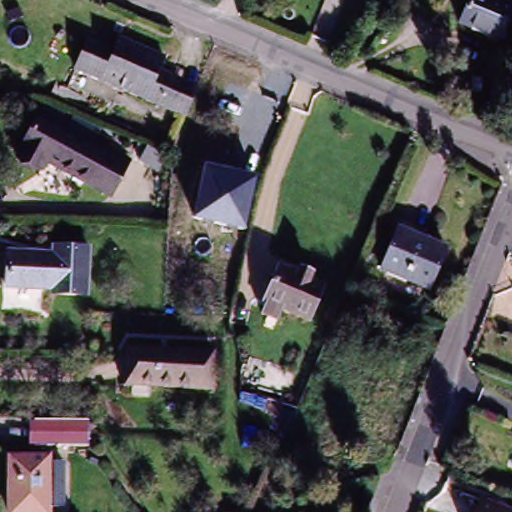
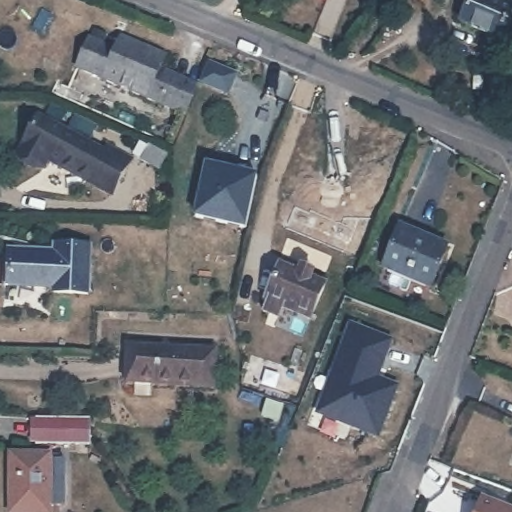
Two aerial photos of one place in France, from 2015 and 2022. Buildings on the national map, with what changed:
unchanged [(470,0),(486,0),(512,11),(512,15),(501,41),(460,24),(470,0)]
unchanged [(160,106),(84,70),(79,67),(94,37),(103,41),(119,49),(125,36),(170,58),(164,71),(170,75),(178,79),(196,87),(197,88),(202,90),(189,119),(187,119),(163,107),(160,106)]
unchanged [(107,197),(44,162),(39,170),(18,157),(14,155),(35,120),(41,123),(100,156),(104,150),(126,164),(107,197)]
unchanged [(158,162),(153,174),(130,164),(135,152),(158,162)]
unchanged [(192,219),(203,164),(257,176),(245,231),(192,219)]
unchanged [(448,245),(430,287),(385,268),(401,225),(448,245)]
unchanged [(54,292),(55,285),(6,280),(10,246),(59,251),(60,244),(95,249),(89,296),(54,292)]
unchanged [(271,303),(268,302),(271,294),(281,266),(299,272),(301,266),(315,271),(312,277),(328,282),(316,315),(316,316),(315,317),(287,308),(283,319),(267,313),(271,303)]
new [(394,342),(378,380),(400,387),(378,440),(316,414),(349,324),(394,342)]
unchanged [(126,388),(128,354),(215,357),(214,391),(126,388)]
demolished [(302,367),(295,397),(273,391),(281,362),(302,367)]
new [(290,370),(282,399),(261,393),(270,364),(290,370)]
unchanged [(42,441),(40,411),(92,410),(94,440),(42,441)]
unchanged [(45,458),(45,463),(62,463),(62,510),(45,510),(45,512),(6,512),(5,458),(45,458)]
unchanged [(512,509),(512,512),(478,512),(484,498),(512,509)]

